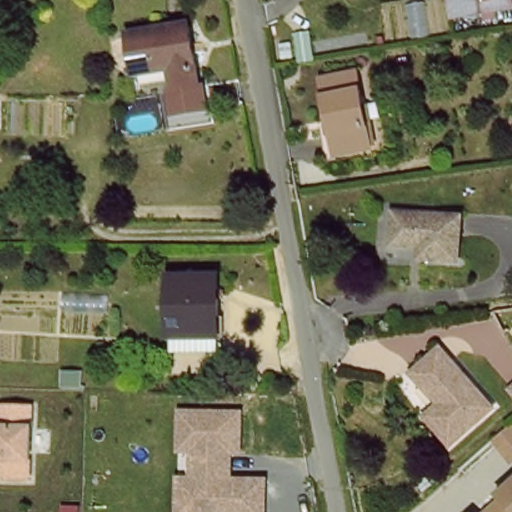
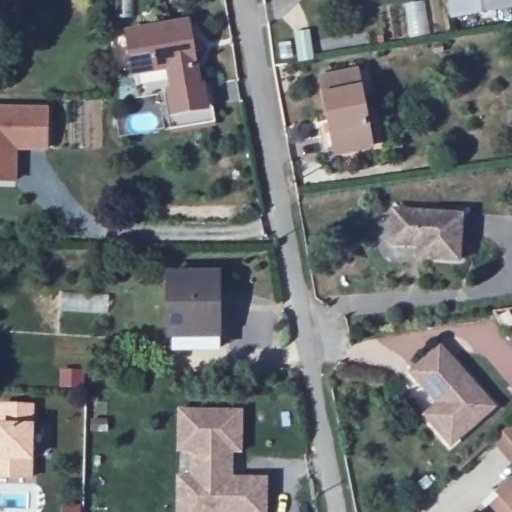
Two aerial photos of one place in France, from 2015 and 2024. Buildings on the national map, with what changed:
unchanged [(512,13),(452,19),(449,0),(512,0),(512,13)]
unchanged [(200,84),(176,87),(171,59),(135,65),(129,30),(190,20),(200,84)]
unchanged [(375,152),(339,158),(327,81),(362,74),(375,152)]
new [(48,108),(48,153),(18,152),(17,185),(0,185),(0,107),(48,108)]
unchanged [(460,264),(419,263),(420,249),(390,248),(394,216),(462,220),(460,264)]
unchanged [(221,337),(172,336),(172,276),(221,277),(221,337)]
unchanged [(496,408),(452,445),(427,414),(442,402),(416,371),(445,347),(496,408)]
unchanged [(512,391),(512,394),(510,392),(512,391)]
unchanged [(8,429),(8,408),(38,409),(36,481),(2,480),(0,480),(0,428),(8,429)]
unchanged [(245,453),(234,453),(234,477),(270,477),(268,512),(177,512),(177,476),(193,476),(192,454),(177,454),(178,409),(245,410),(245,453)]
unchanged [(501,496),(512,486),(512,512),(490,512),(505,499),(501,496)]

